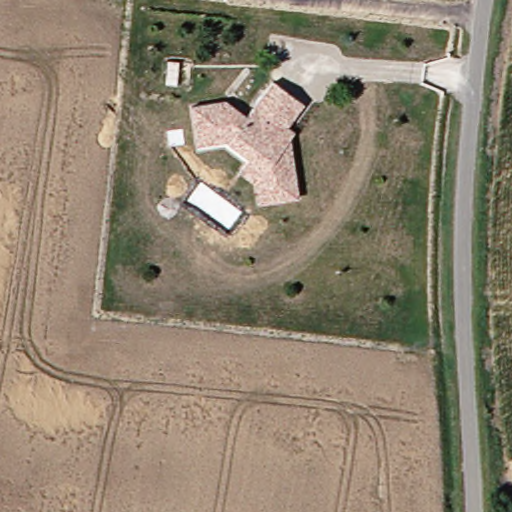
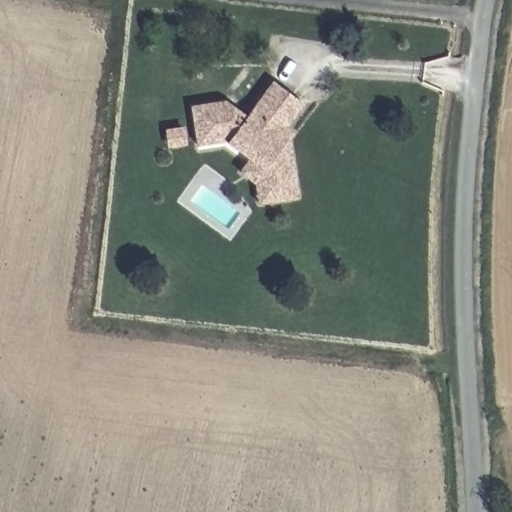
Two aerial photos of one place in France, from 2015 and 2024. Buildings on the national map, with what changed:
unchanged [(268,188),(266,171),(250,160),(227,141),(197,147),(193,107),(226,102),(247,117),(274,82),(303,104),(281,135),(290,141),(297,184),(268,188)]
unchanged [(299,199),(260,204),(257,185),(241,173),(250,160),(266,171),(268,188),(297,184),(299,199)]

